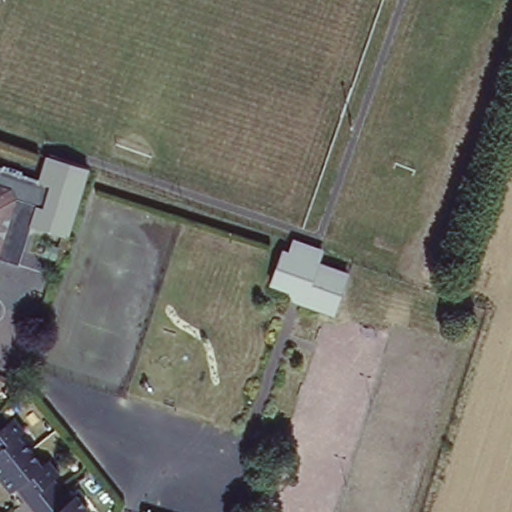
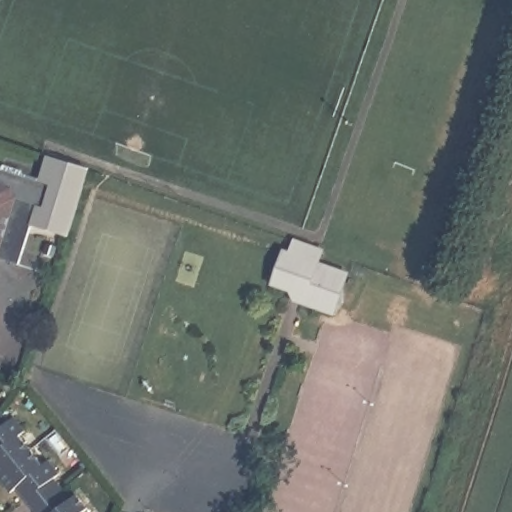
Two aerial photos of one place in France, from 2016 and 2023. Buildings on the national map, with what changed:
unchanged [(49,154),(91,169),(72,238),(33,225),(21,264),(0,257),(0,167),(39,180),(49,154)]
unchanged [(326,250),(322,261),(353,272),(339,315),(306,304),(312,288),(303,285),(302,291),(296,292),(275,285),(287,251),(291,252),(296,239),(326,250)]
unchanged [(13,416),(22,428),(18,432),(41,461),(46,457),(54,467),(48,473),(68,499),(75,494),(83,505),(76,510),(78,512),(36,512),(13,483),(8,486),(0,475),(0,410),(9,419),(13,416)]

